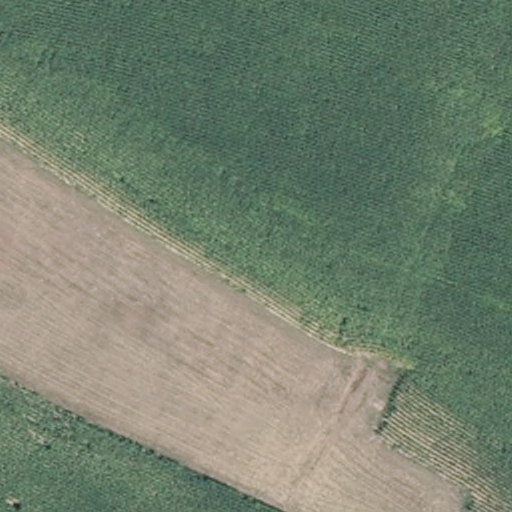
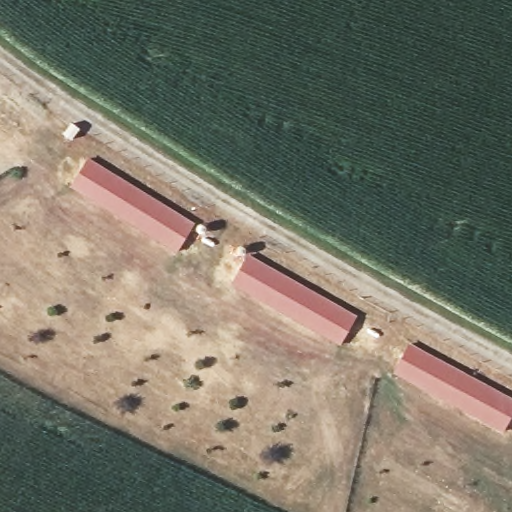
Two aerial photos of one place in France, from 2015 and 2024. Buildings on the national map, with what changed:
new [(178,253),(71,188),(88,158),(195,223),(178,253)]
new [(357,315),(341,345),(232,285),(248,254),(357,315)]
new [(512,397),(512,416),(504,433),(394,374),(409,343),(512,397)]

